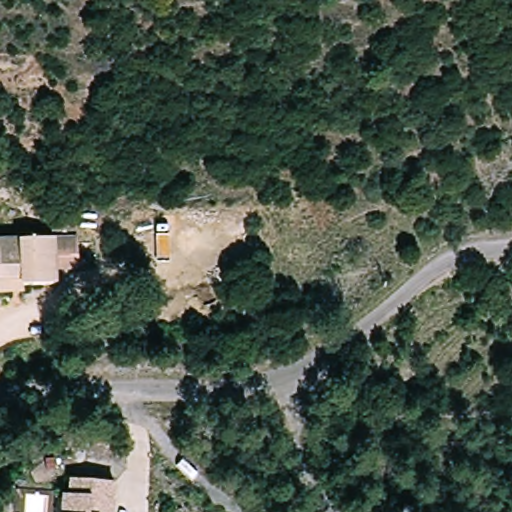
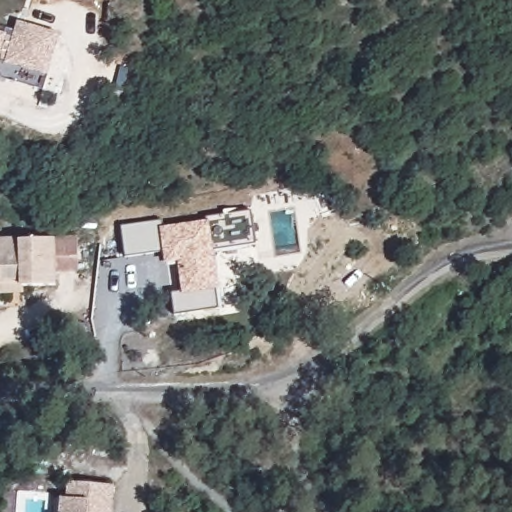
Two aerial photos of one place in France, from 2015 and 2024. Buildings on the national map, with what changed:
new [(0,23),(15,26),(17,19),(59,30),(48,71),(44,86),(0,75),(0,23)]
new [(218,290),(221,310),(176,314),(173,293),(183,292),(178,262),(166,264),(163,250),(127,255),(122,226),(162,220),(163,226),(208,220),(207,217),(252,211),(258,244),(215,252),(221,290),(218,290)]
unchanged [(0,236),(58,231),(83,230),(86,262),(60,263),(60,278),(27,280),(28,288),(0,290),(0,236)]
unchanged [(55,509),(60,508),(58,490),(70,488),(105,485),(107,512),(55,512),(55,509)]

